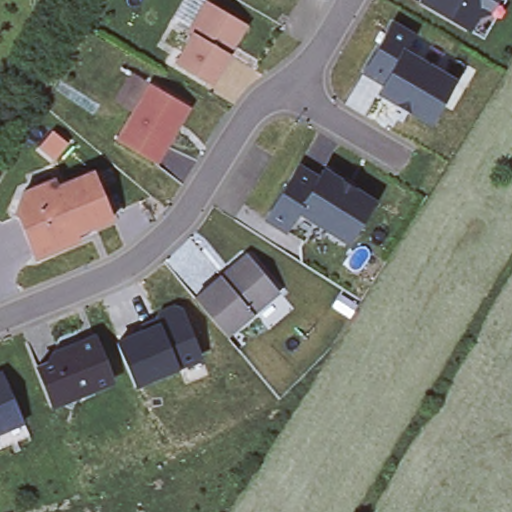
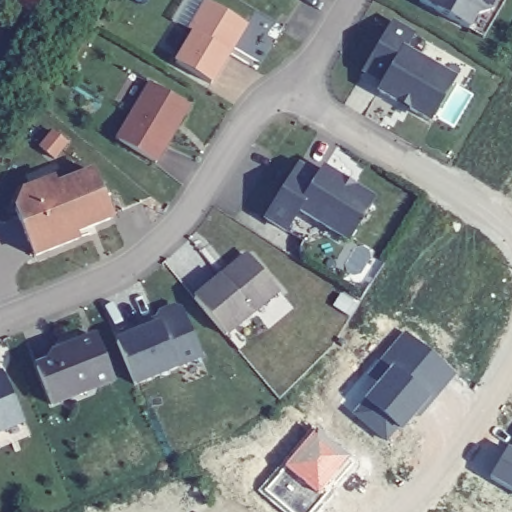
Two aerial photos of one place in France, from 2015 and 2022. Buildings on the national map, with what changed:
unchanged [(210,84),(175,62),(193,33),(188,30),(206,0),(246,24),(210,84)]
unchanged [(419,1),(420,0),(495,0),(489,11),(477,16),(468,30),(419,1)]
unchanged [(378,91),(382,82),(363,71),(392,22),(412,35),(403,51),(453,80),(429,121),(378,91)]
unchanged [(116,139),(150,83),(185,104),(188,107),(175,129),(155,162),(116,139)]
unchanged [(265,218),(298,166),(317,177),(322,169),(372,201),(347,241),(298,211),(285,231),(265,218)]
unchanged [(35,256),(15,209),(23,191),(53,179),(56,186),(93,171),(112,218),(75,232),(78,239),(35,256)]
unchanged [(203,310),(194,298),(220,276),(224,280),(232,272),(233,266),(243,257),(250,257),(278,291),(225,336),(203,310)]
unchanged [(175,307),(181,310),(200,356),(133,383),(116,342),(144,330),(142,326),(156,320),(159,313),(175,307)]
new [(378,382),(368,375),(405,332),(457,374),(421,417),(415,412),(387,441),(351,412),(378,382)]
unchanged [(111,380),(97,386),(87,382),(73,387),(68,397),(51,404),(37,367),(63,357),(67,348),(95,337),(111,380)]
unchanged [(23,422),(0,432),(0,373),(2,372),(23,422)]
new [(348,460),(353,463),(312,512),(290,512),(265,491),(318,428),(350,457),(348,460)]
new [(510,443),(512,444),(512,490),(490,478),(510,443)]

